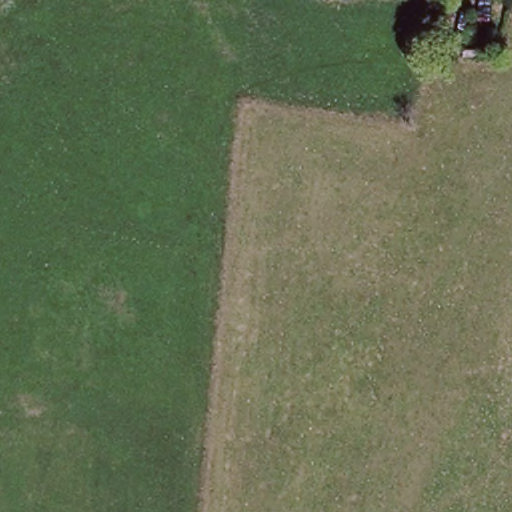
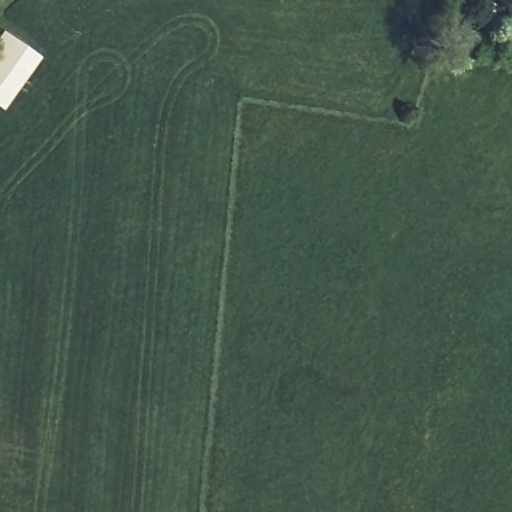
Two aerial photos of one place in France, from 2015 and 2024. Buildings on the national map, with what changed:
new [(1,31),(37,58),(2,105),(0,103),(0,33),(1,31)]

